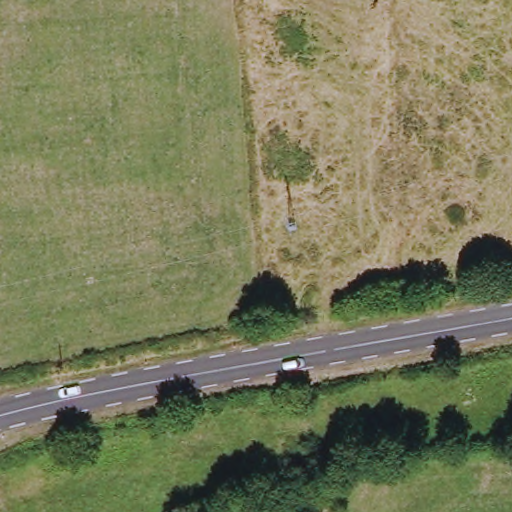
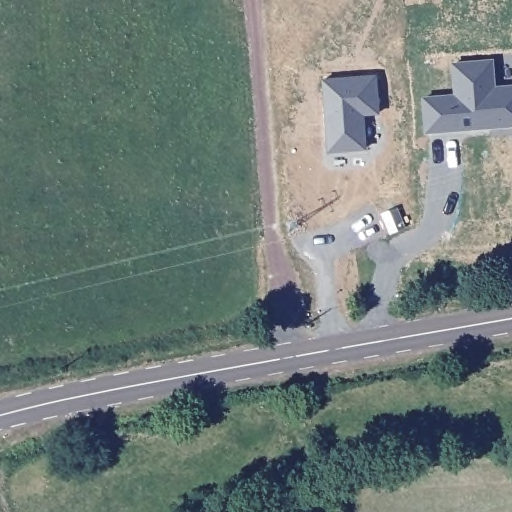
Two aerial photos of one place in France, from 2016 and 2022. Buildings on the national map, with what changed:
new [(459,66),(497,64),(499,90),(512,89),(512,127),(432,134),(429,100),(461,98),(459,66)]
new [(380,78),(383,115),(368,116),(370,150),(332,154),(325,82),(380,78)]

